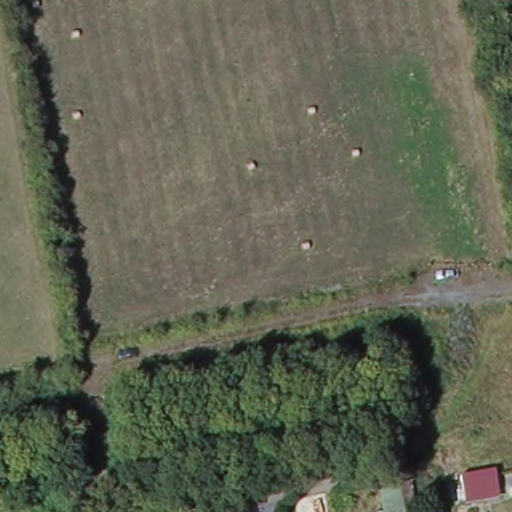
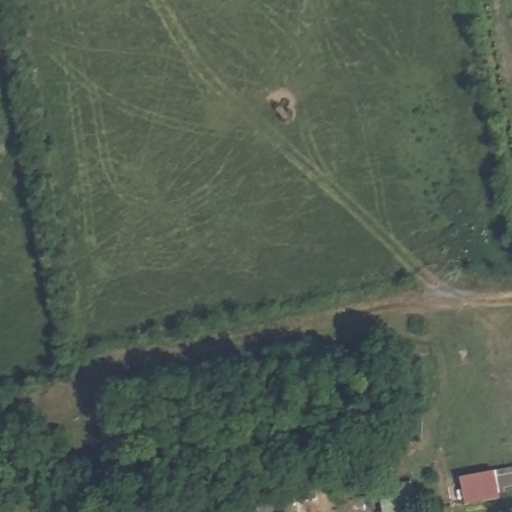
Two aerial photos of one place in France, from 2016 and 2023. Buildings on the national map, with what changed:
unchanged [(501,474),(505,494),(469,502),(464,479),(501,474)]

